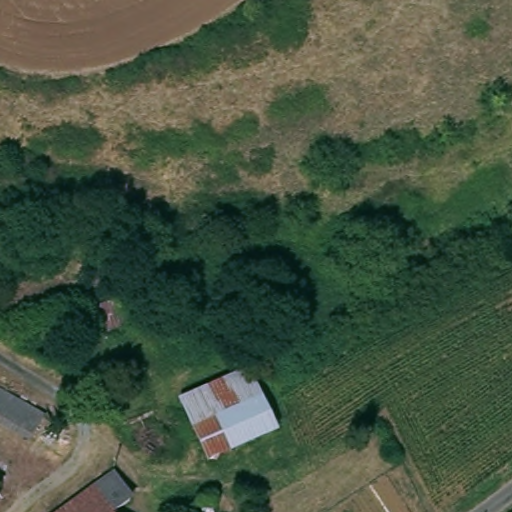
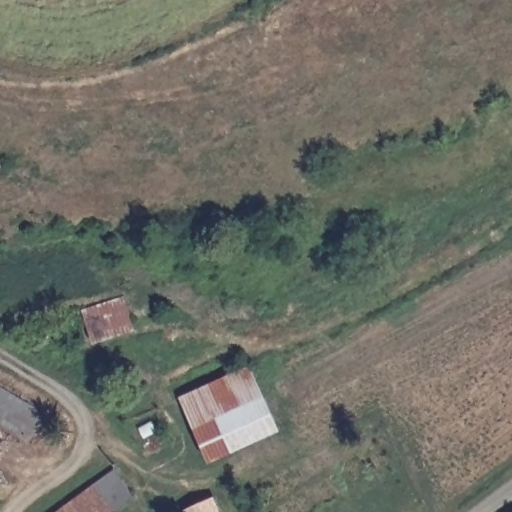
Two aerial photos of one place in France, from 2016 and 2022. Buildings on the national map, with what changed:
unchanged [(125,297),(129,328),(85,343),(78,310),(125,297)]
unchanged [(247,367),(275,429),(204,463),(176,394),(247,367)]
unchanged [(40,411),(27,433),(0,419),(0,389),(40,411)]
unchanged [(110,464),(127,486),(105,505),(96,512),(52,512),(110,464)]
unchanged [(111,512),(96,512),(105,505),(111,512)]

